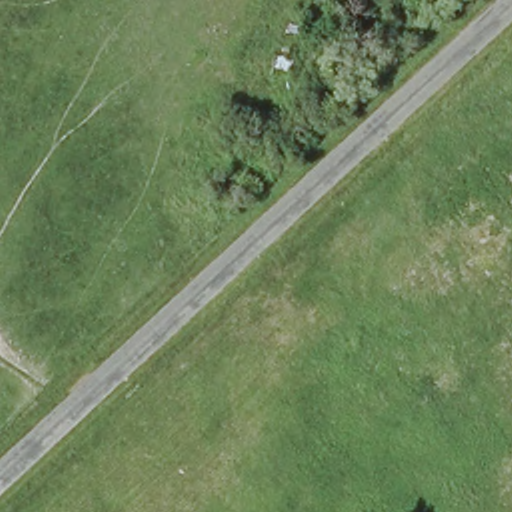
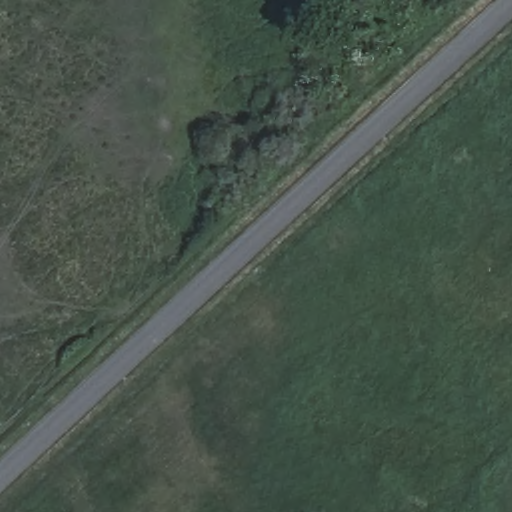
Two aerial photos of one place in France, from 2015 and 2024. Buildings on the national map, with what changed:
[]

